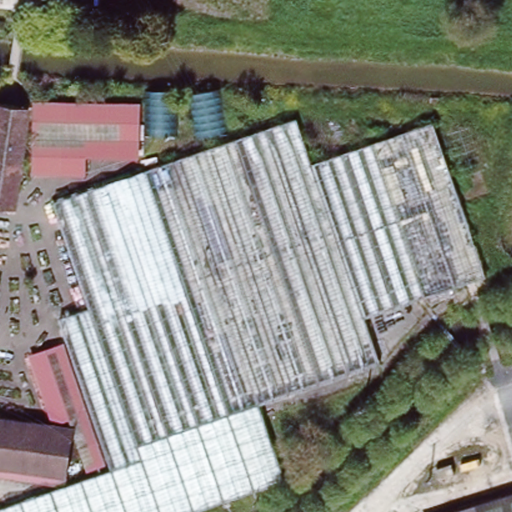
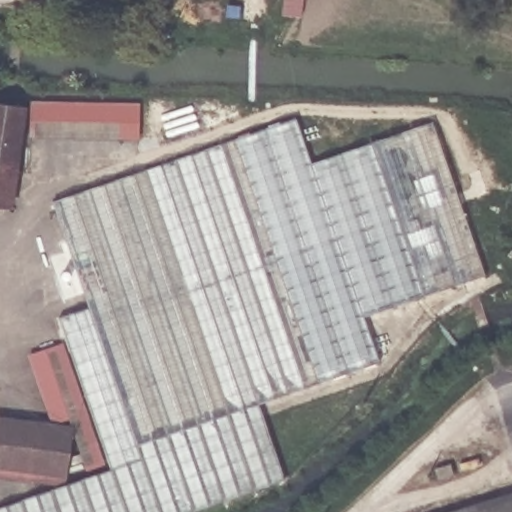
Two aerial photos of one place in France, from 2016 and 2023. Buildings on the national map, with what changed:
unchanged [(178,93),(179,137),(147,138),(147,94),(178,93)]
unchanged [(215,94),(215,138),(182,138),(183,94),(215,94)]
unchanged [(142,109),(140,161),(89,160),(88,176),(33,175),(33,105),(142,109)]
unchanged [(23,110),(10,210),(0,208),(0,107),(23,110)]
unchanged [(297,120),(312,164),(430,125),(482,276),(365,319),(380,359),(258,403),(134,445),(87,310),(51,204),(297,120)]
unchanged [(110,471),(66,343),(58,320),(87,310),(134,445),(258,403),(282,470),(286,480),(194,512),(0,512),(0,511),(48,494),(89,479),(110,471)]
unchanged [(66,343),(110,471),(89,479),(73,439),(74,432),(55,430),(31,355),(66,343)]
unchanged [(55,430),(74,432),(73,439),(67,485),(47,483),(0,477),(0,427),(0,423),(39,428),(55,430)]
unchanged [(512,512),(445,512),(512,491),(512,512)]

